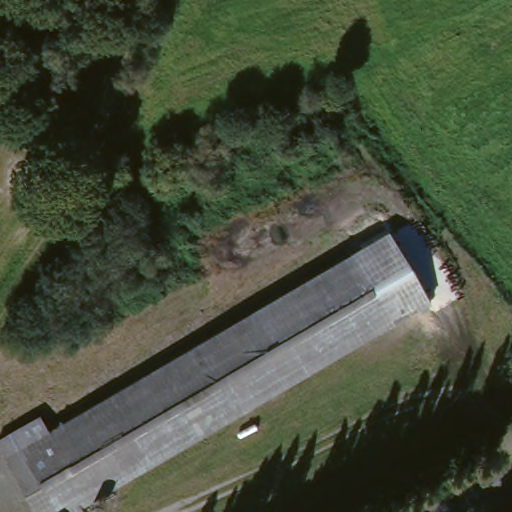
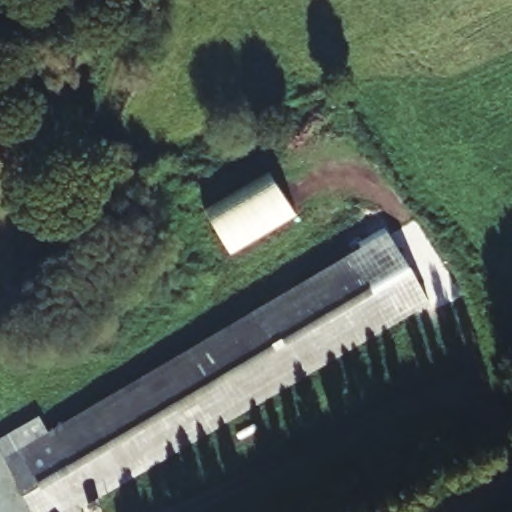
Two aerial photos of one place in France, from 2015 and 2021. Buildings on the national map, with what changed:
new [(297,214),(230,254),(206,211),(272,171),(297,214)]
unchanged [(396,232),(431,296),(384,323),(346,260),(396,232)]
unchanged [(384,323),(80,499),(71,504),(74,512),(28,512),(0,452),(0,437),(35,416),(45,431),(346,260),(384,323)]

